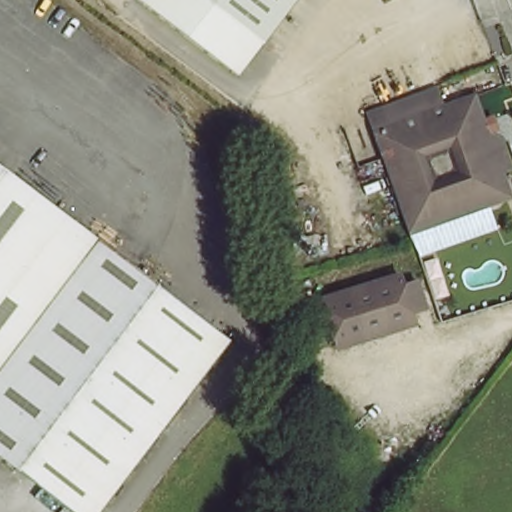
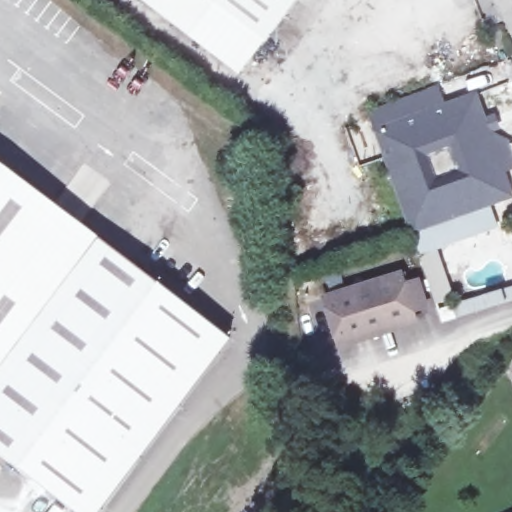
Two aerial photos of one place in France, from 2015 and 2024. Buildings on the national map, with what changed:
unchanged [(147,0),(291,0),(238,70),(147,0)]
unchanged [(430,227),(427,233),(412,239),(385,169),(363,115),(378,109),(380,108),(420,92),(424,91),(433,87),(440,106),(471,94),(485,130),(505,138),(512,158),(512,165),(500,170),(510,194),(483,205),(430,227)]
unchanged [(231,340),(103,512),(76,512),(0,456),(0,168),(231,340)]
unchanged [(397,277),(401,287),(415,282),(425,310),(411,315),(415,325),(342,351),(325,303),(397,277)]

